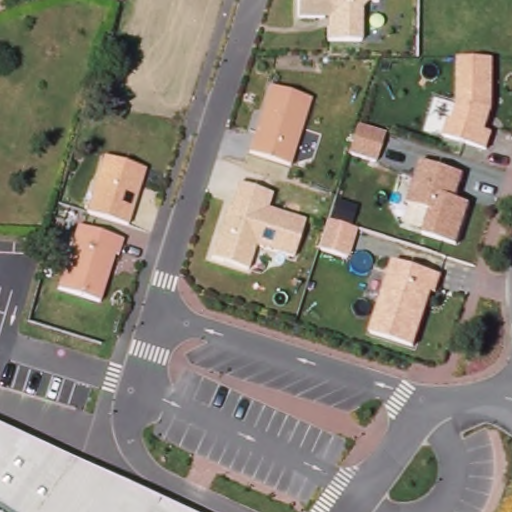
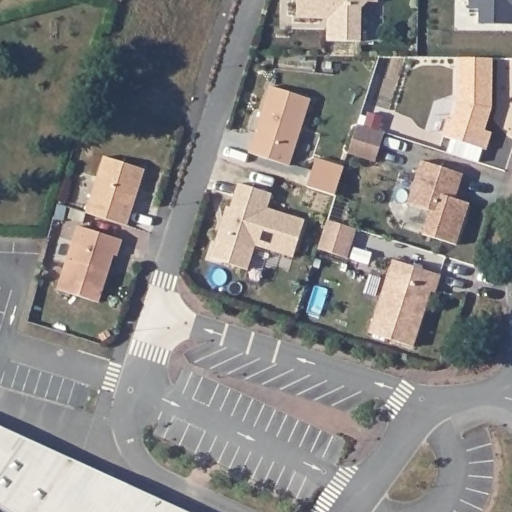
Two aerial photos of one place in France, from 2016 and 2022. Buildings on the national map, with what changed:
unchanged [(379,2),(369,3),(362,9),(362,41),(328,43),(327,20),(296,19),(297,0),(380,0),(379,2)]
new [(479,25),(480,10),(470,9),(470,0),(512,0),(512,25),(479,25)]
unchanged [(493,59),(494,109),(486,130),(494,133),(487,151),(442,137),(450,118),(452,119),(458,104),(458,59),(493,59)]
unchanged [(312,99),(291,166),(250,153),(270,86),(312,99)]
unchanged [(386,133),(376,165),(348,156),(358,125),(386,133)]
unchanged [(147,168),(128,227),(85,214),(103,156),(147,168)]
new [(316,159),(344,167),(335,196),(307,187),(316,159)]
unchanged [(465,174),(457,199),(471,203),(458,247),(422,235),(430,212),(408,205),(422,161),(465,174)]
unchanged [(273,194),(269,209),(305,221),(294,257),(257,247),(249,271),(210,259),(227,207),(231,208),(239,184),(273,194)]
unchanged [(332,220),(339,201),(358,207),(352,226),(358,228),(348,261),(317,251),(328,219),(332,220)]
unchanged [(125,240),(120,257),(115,255),(100,303),(58,290),(78,225),(125,240)]
unchanged [(441,277),(433,300),(427,298),(411,350),(369,334),(391,261),(441,277)]
unchanged [(76,512),(0,512),(0,429),(94,474),(76,512)]
unchanged [(179,512),(76,512),(94,474),(179,512)]

